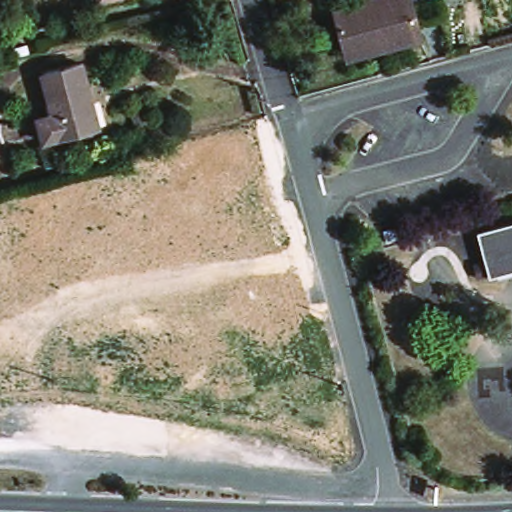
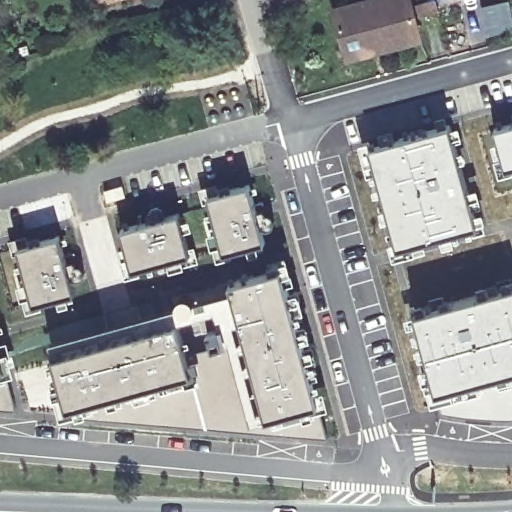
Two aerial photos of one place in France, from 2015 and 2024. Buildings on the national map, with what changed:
unchanged [(334,11),(375,0),(409,0),(420,40),(388,49),(348,60),(345,50),(334,11)]
new [(508,0),(512,14),(512,29),(482,37),(473,7),(502,0),(508,0)]
unchanged [(97,131),(70,139),(68,134),(42,141),(38,123),(53,119),(42,78),(80,68),(97,131)]
new [(512,167),(505,169),(492,127),(512,122),(512,167)]
new [(450,123),(479,224),(395,251),(367,144),(450,123)]
demolished [(129,250),(110,177),(154,166),(172,239),(129,250)]
new [(210,196),(250,186),(265,242),(224,252),(210,196)]
new [(122,230),(178,215),(190,255),(132,270),(122,230)]
demolished [(478,234),(512,225),(512,273),(490,279),(478,234)]
demolished [(386,245),(382,233),(395,230),(398,241),(386,245)]
new [(19,248),(59,236),(74,294),(34,304),(19,248)]
new [(317,402),(327,437),(68,415),(67,405),(52,354),(177,320),(185,355),(212,347),(207,329),(239,318),(228,281),(282,266),(317,402)]
demolished [(282,299),(235,311),(228,285),(275,272),(282,299)]
new [(512,371),(435,393),(413,311),(512,284),(512,371)]
demolished [(255,379),(246,340),(303,327),(312,366),(255,379)]
demolished [(120,358),(115,358),(115,348),(120,348),(120,346),(179,345),(180,381),(120,381),(120,358)]
new [(15,408),(0,407),(0,353),(3,367),(15,408)]
demolished [(0,391),(0,360),(27,360),(27,391),(0,391)]
demolished [(81,443),(85,415),(92,416),(93,408),(167,417),(163,452),(81,443)]

